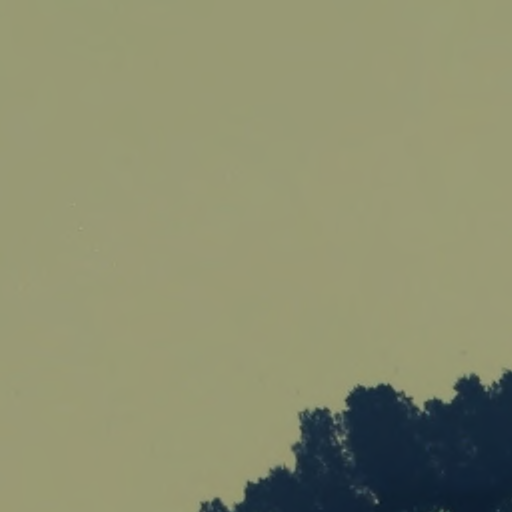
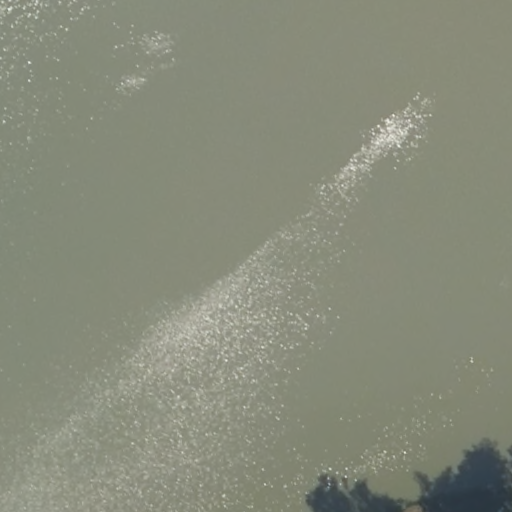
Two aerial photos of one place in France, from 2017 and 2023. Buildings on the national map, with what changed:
[]

